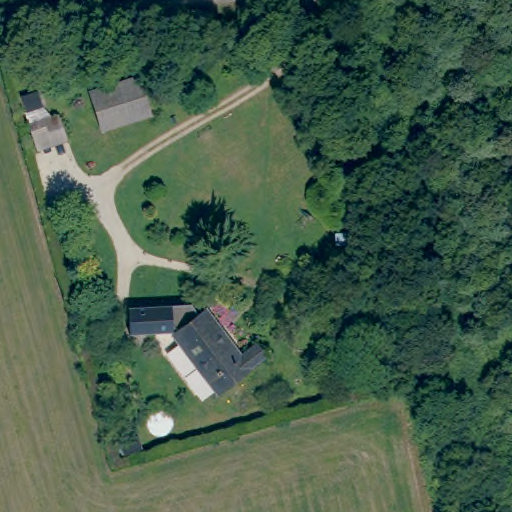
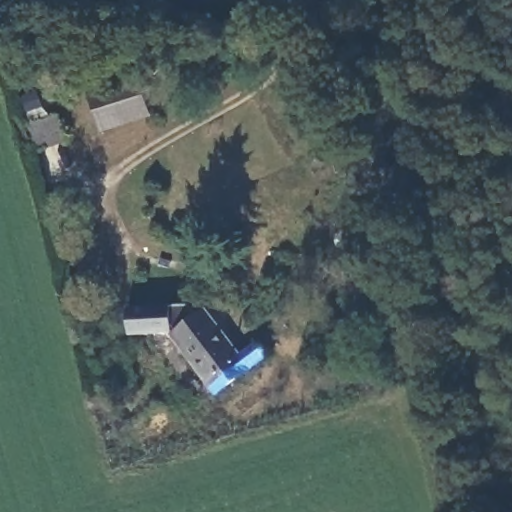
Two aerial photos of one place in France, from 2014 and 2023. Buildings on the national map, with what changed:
unchanged [(89,90),(135,75),(146,113),(102,126),(89,90)]
unchanged [(34,125),(59,119),(67,143),(41,150),(34,125)]
unchanged [(132,308),(194,308),(200,315),(207,310),(243,356),(258,344),(267,357),(219,395),(175,335),(132,336),(132,308)]

